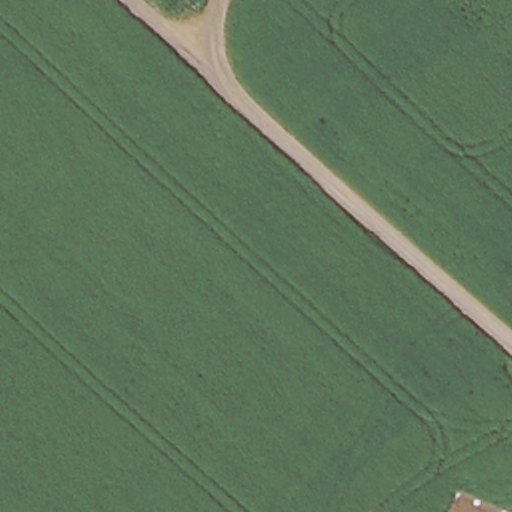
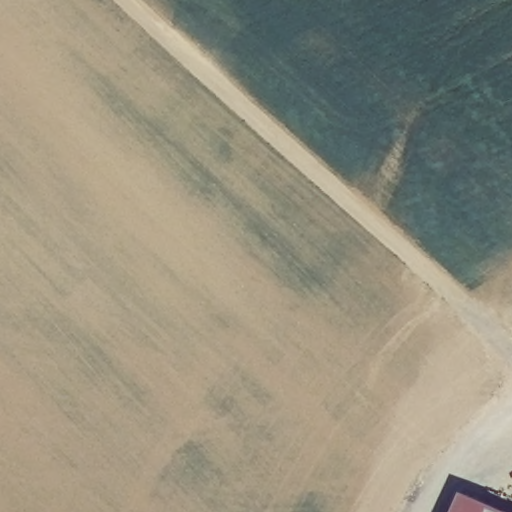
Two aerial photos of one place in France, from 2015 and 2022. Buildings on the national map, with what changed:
new [(501,512),(448,512),(457,492),(501,512)]

